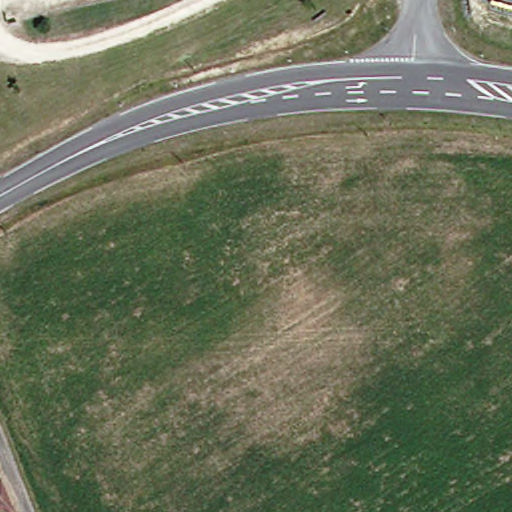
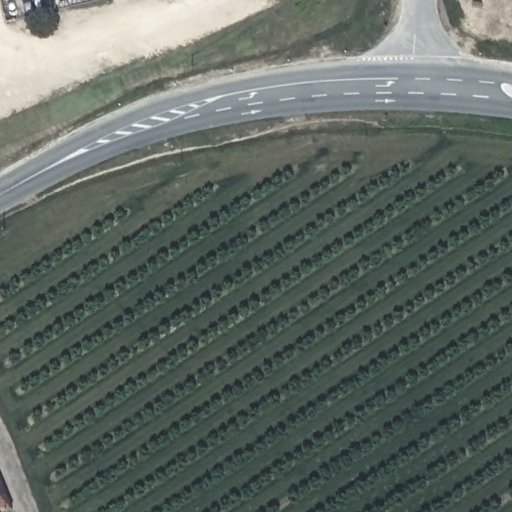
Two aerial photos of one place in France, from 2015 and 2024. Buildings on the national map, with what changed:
unchanged [(10,477),(25,510),(0,504),(0,474),(10,477)]

